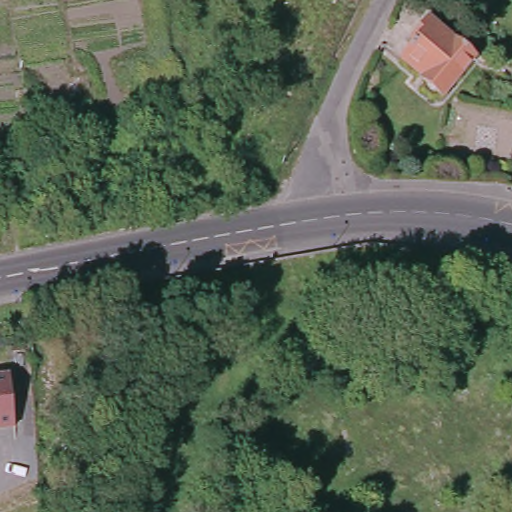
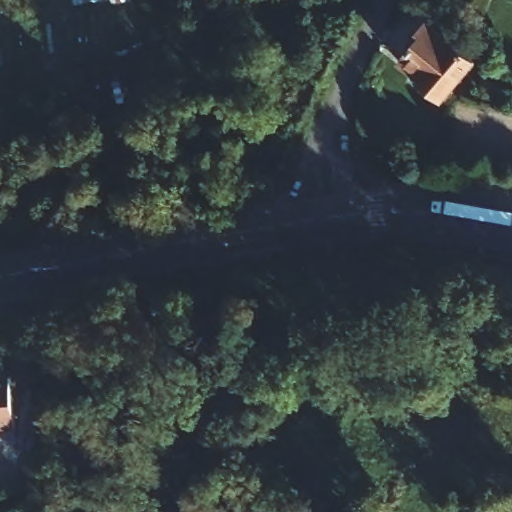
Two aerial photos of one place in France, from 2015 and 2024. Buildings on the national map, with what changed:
unchanged [(454,31),(467,43),(462,50),(474,60),(442,96),(437,94),(434,96),(420,85),(422,81),(420,79),(422,77),(400,59),(414,43),(410,40),(427,20),(447,37),(454,31)]
unchanged [(8,375),(15,429),(0,431),(0,376),(8,375)]

